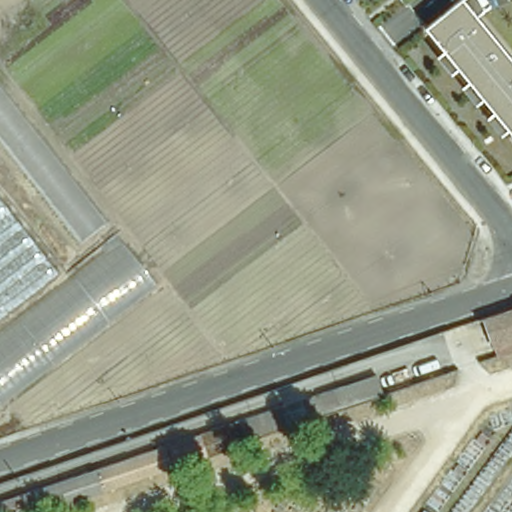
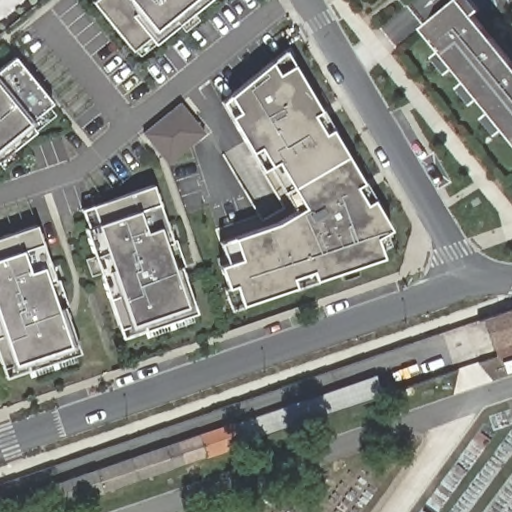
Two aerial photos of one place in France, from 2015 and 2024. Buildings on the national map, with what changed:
new [(157,45),(150,37),(134,50),(94,2),(97,0),(210,0),(157,45)]
unchanged [(459,2),(512,66),(512,140),(423,32),(459,2)]
new [(377,238),(383,257),(235,308),(219,265),(226,263),(219,242),(278,223),(298,210),(270,164),(262,169),(222,100),(285,49),(391,229),(377,238)]
new [(31,122),(37,130),(0,160),(0,69),(15,56),(53,102),(31,122)]
demolished [(108,225),(79,247),(0,144),(0,83),(108,225)]
new [(169,164),(145,135),(181,103),(206,132),(169,164)]
new [(154,184),(196,313),(122,338),(82,208),(154,184)]
new [(38,225),(80,353),(5,378),(0,362),(0,237),(38,225)]
demolished [(120,243),(158,295),(0,409),(0,335),(120,243)]
unchanged [(512,311),(512,340),(492,348),(481,322),(512,311)]
unchanged [(492,348),(512,340),(512,356),(497,361),(492,348)]
unchanged [(382,383),(419,370),(422,386),(267,438),(260,415),(379,376),(382,383)]
unchanged [(226,446),(226,447),(34,512),(0,512),(0,505),(220,431),(226,446)]

